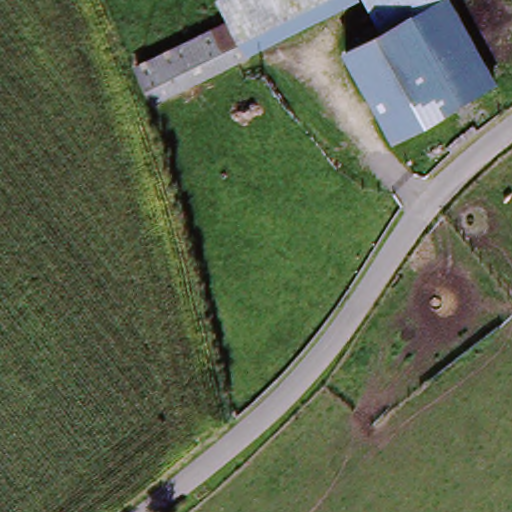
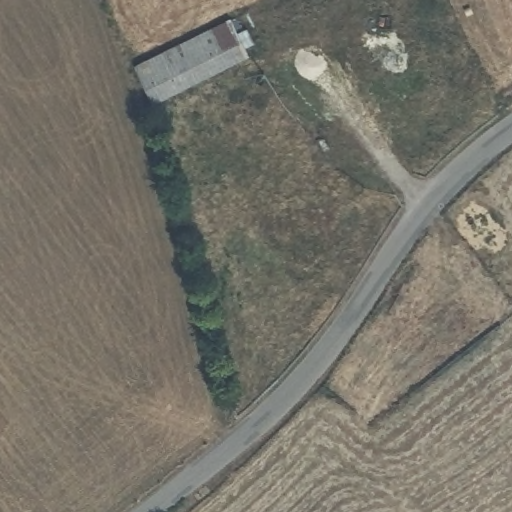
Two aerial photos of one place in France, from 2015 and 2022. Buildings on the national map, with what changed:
demolished [(408,17),(441,1),(483,93),(456,107),(408,17)]
demolished [(394,137),(348,46),(382,30),(408,17),(456,107),(394,137)]
unchanged [(251,65),(154,110),(137,76),(153,70),(170,62),(235,31),(239,40),(251,65)]

